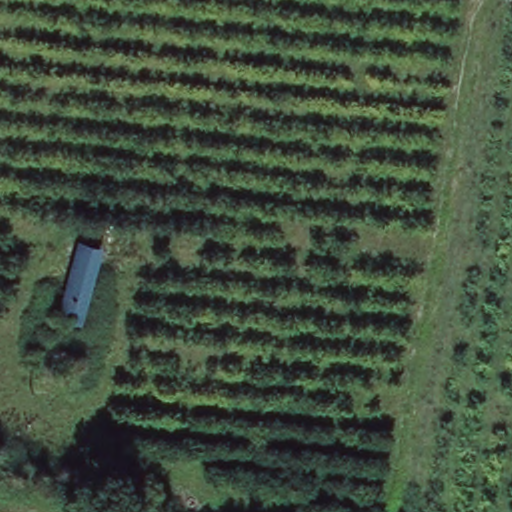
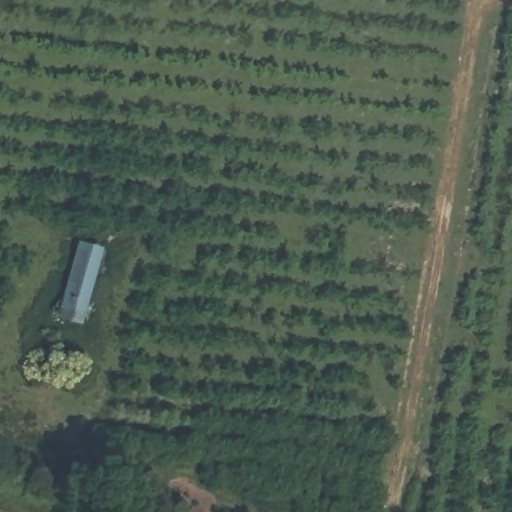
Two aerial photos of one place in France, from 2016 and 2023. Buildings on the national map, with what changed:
unchanged [(82,241),(102,252),(85,297),(76,319),(57,312),(82,241)]

